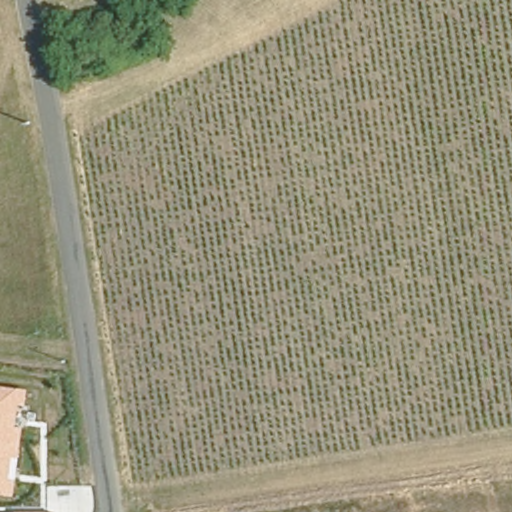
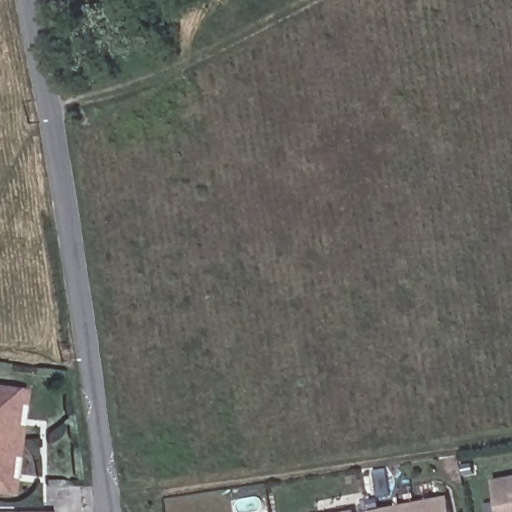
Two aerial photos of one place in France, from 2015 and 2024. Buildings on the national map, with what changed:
unchanged [(27,405),(19,405),(17,425),(25,427),(15,495),(0,494),(0,386),(30,390),(27,405)]
new [(512,476),(512,512),(502,512),(496,478),(512,476)]
new [(451,495),(454,512),(370,512),(370,511),(451,495)]
new [(354,512),(346,512),(354,510),(354,512)]

